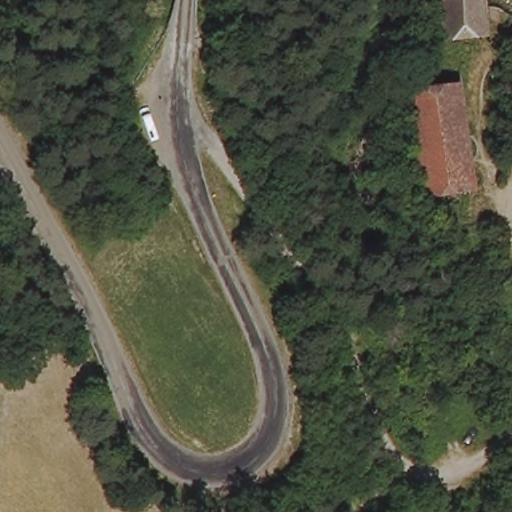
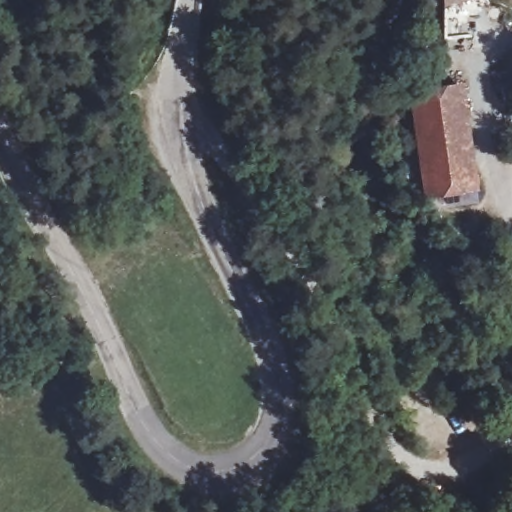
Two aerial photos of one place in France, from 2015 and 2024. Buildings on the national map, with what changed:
unchanged [(445,0),(481,0),(482,34),(442,40),(445,0)]
unchanged [(417,138),(407,94),(455,84),(463,128),(417,138)]
unchanged [(475,185),(428,195),(417,138),(463,128),(475,185)]

